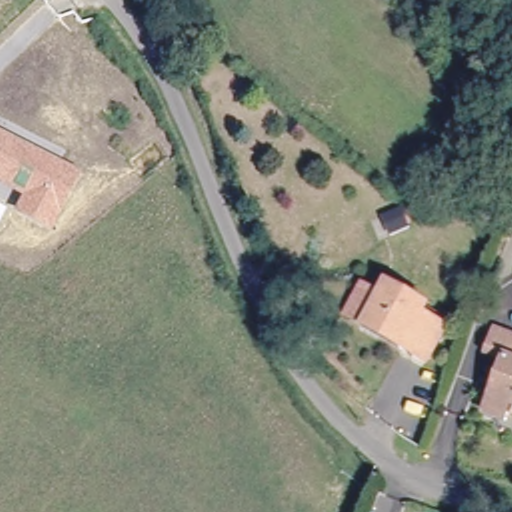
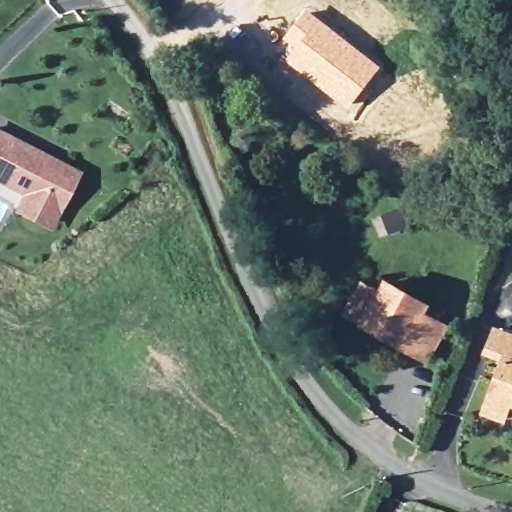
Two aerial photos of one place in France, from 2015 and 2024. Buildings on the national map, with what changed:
new [(307,8),(381,66),(347,109),(284,59),(291,46),(282,39),(307,8)]
unchanged [(82,173),(54,233),(12,212),(21,194),(0,183),(0,129),(82,173)]
unchanged [(418,362),(394,348),(354,324),(378,285),(418,307),(414,314),(437,327),(418,362)]
unchanged [(489,408),(508,351),(490,345),(496,324),(512,330),(512,403),(508,415),(489,408)]

